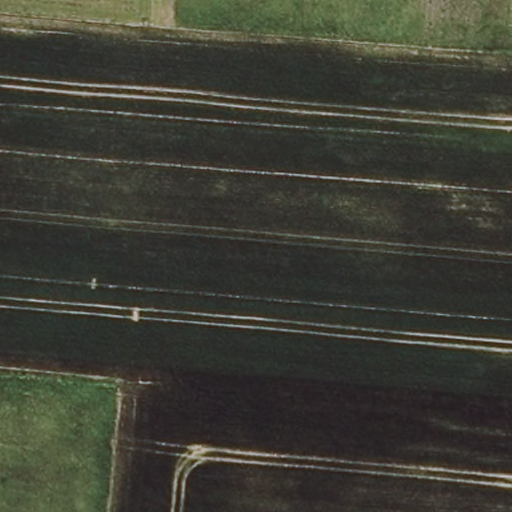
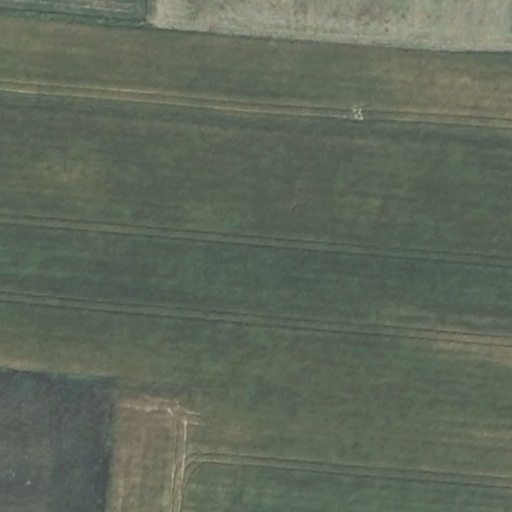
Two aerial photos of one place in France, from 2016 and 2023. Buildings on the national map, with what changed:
[]

